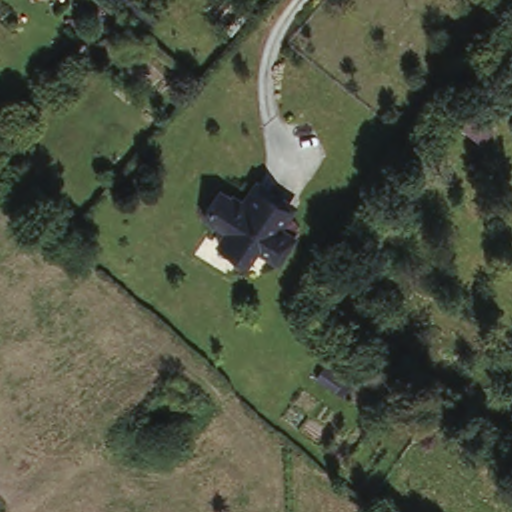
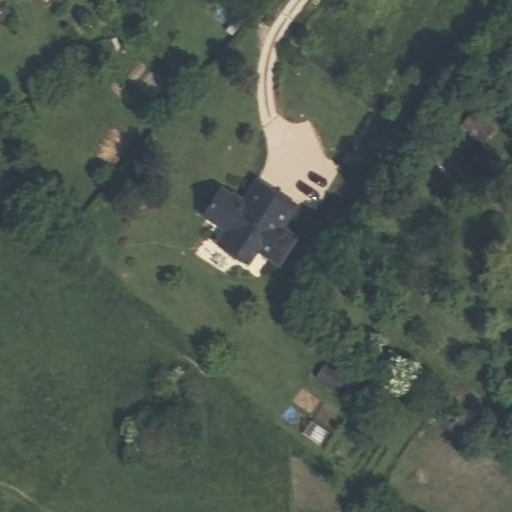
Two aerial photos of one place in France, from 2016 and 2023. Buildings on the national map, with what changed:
unchanged [(291,208),(279,226),(296,237),(280,262),(257,248),(249,262),(219,243),(227,229),(204,215),(220,189),(240,202),(250,199),(252,195),(257,187),(267,193),(276,199),(291,208)]

